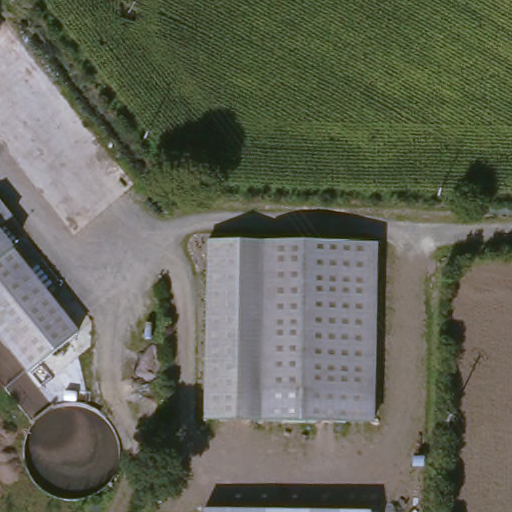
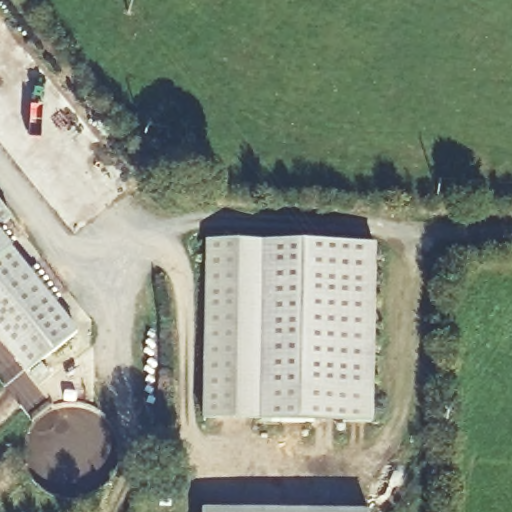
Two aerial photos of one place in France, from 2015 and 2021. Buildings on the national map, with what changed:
unchanged [(13,221),(0,230),(0,204),(13,221)]
unchanged [(24,375),(0,345),(0,236),(13,252),(77,335),(24,375)]
unchanged [(373,425),(203,421),(206,243),(377,245),(373,425)]

